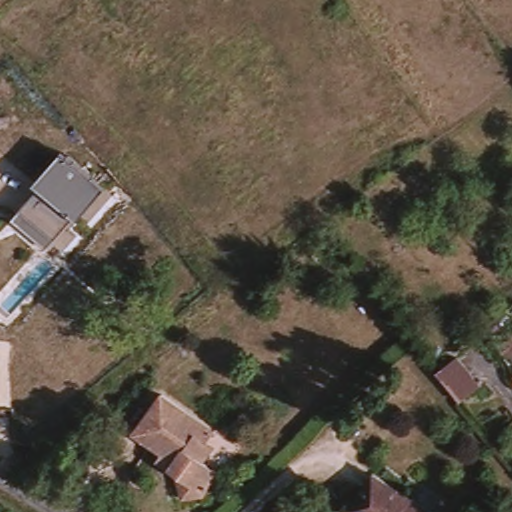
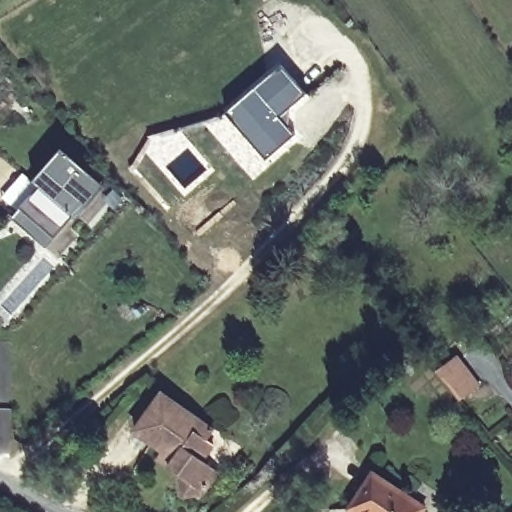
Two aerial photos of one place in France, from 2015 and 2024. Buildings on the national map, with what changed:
new [(282,66),(307,95),(281,119),(296,136),(266,161),(226,114),(282,66)]
unchanged [(74,218),(55,239),(23,211),(41,189),(35,183),(63,151),(105,188),(77,220),(74,218)]
unchanged [(439,374),(457,360),(478,387),(460,401),(439,374)]
unchanged [(469,412),(492,393),(502,405),(479,424),(469,412)]
unchanged [(164,458),(136,438),(160,402),(212,439),(206,449),(214,454),(203,470),(217,479),(205,498),(183,501),(181,482),(168,473),(159,467),(164,458)]
unchanged [(422,510),(421,512),(353,512),(351,511),(373,478),(422,510)]

